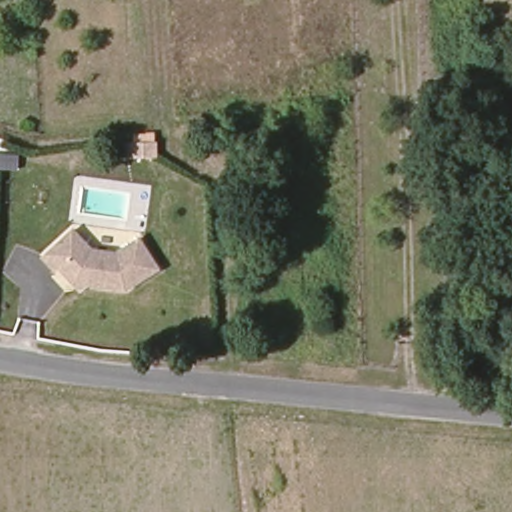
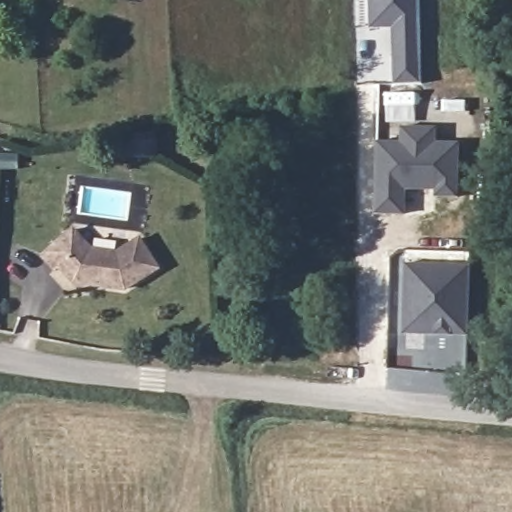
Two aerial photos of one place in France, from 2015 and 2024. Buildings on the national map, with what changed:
new [(422,84),(393,84),(391,28),(369,29),(369,0),(420,0),(422,84)]
new [(437,127),(437,142),(460,142),(459,198),(435,198),(435,191),(406,191),(405,215),(374,214),(376,141),(401,141),(401,127),(437,127)]
unchanged [(72,226),(91,245),(115,249),(140,234),(161,267),(122,291),(68,281),(40,256),(72,226)]
new [(469,337),(401,335),(403,264),(471,265),(469,337)]

